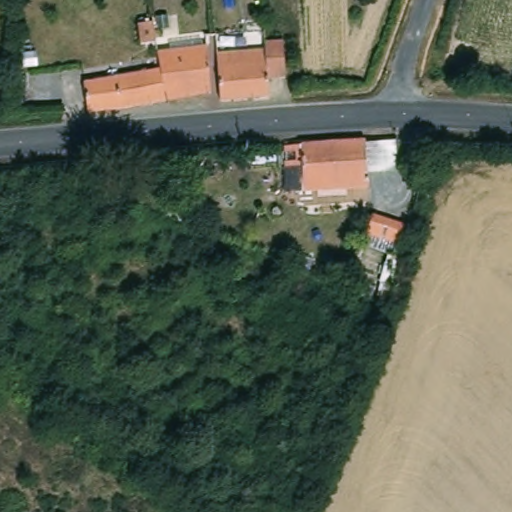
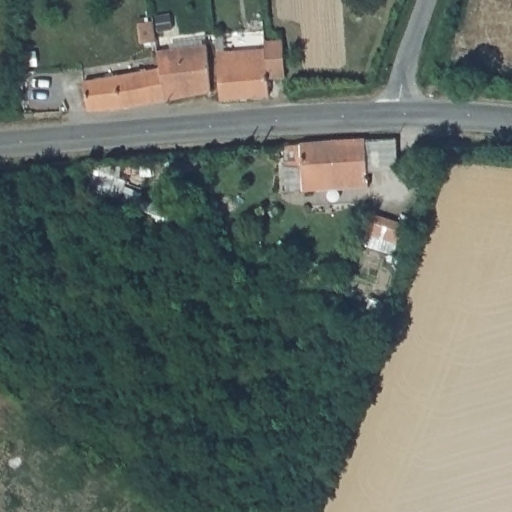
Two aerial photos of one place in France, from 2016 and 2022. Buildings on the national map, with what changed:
unchanged [(154,25),(156,40),(141,42),(138,22),(153,21),(154,25)]
unchanged [(264,41),(283,39),(285,77),(268,78),(269,95),(221,99),(217,52),(265,49),(264,41)]
unchanged [(164,85),(164,82),(161,67),(158,51),(207,45),(211,91),(167,100),(164,85)]
unchanged [(161,67),(164,82),(164,85),(167,100),(88,111),(83,82),(161,67)]
unchanged [(367,183),(309,187),(307,167),(287,168),(283,146),(365,141),(367,183)]

